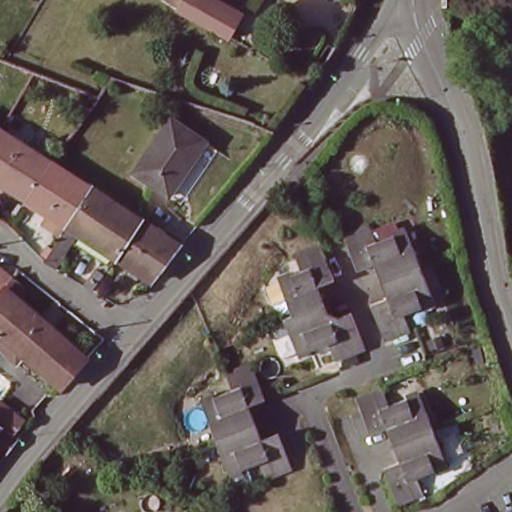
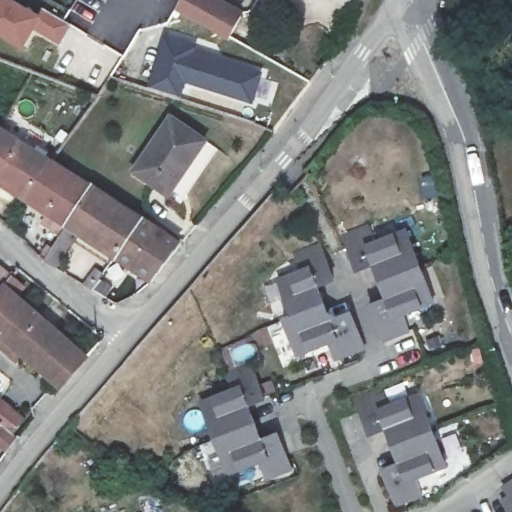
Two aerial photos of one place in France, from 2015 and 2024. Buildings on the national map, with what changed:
new [(42,8),(73,26),(60,45),(34,30),(23,49),(0,35),(0,0),(17,0),(39,13),(42,8)]
unchanged [(179,0),(224,0),(242,9),(230,39),(174,9),(179,0)]
new [(201,45),(199,51),(264,71),(254,104),(187,83),(183,95),(149,86),(165,35),(201,45)]
unchanged [(172,116),(206,138),(169,194),(134,172),(172,116)]
unchanged [(0,129),(3,130),(59,168),(34,205),(0,183),(0,129)]
unchanged [(73,230),(34,205),(59,168),(97,193),(73,230)]
unchanged [(52,251),(58,254),(73,230),(97,193),(146,226),(122,262),(83,237),(61,274),(50,268),(52,263),(47,260),(52,251)]
unchanged [(375,281),(369,263),(352,269),(339,234),(365,224),(372,242),(402,230),(415,267),(375,281)]
unchanged [(184,252),(158,285),(122,262),(146,226),(184,252)]
unchanged [(264,282),(296,270),(289,253),(315,243),(329,279),(312,285),(319,302),(279,319),(264,282)]
unchanged [(17,279),(17,278),(29,288),(21,299),(92,361),(68,388),(3,332),(0,335),(0,265),(16,279),(17,279)]
unchanged [(415,267),(429,303),(399,314),(404,330),(404,331),(378,340),(365,304),(377,299),(382,298),(375,281),(415,267)]
unchanged [(319,302),(326,319),(348,311),(360,347),(330,359),(324,343),(293,355),(279,319),(319,302)]
unchanged [(214,437),(201,402),(231,389),(225,374),(251,364),(264,399),(248,405),(254,422),(214,437)]
unchanged [(393,447),(386,429),(369,435),(355,400),(382,390),(389,407),(419,395),(432,431),(393,447)]
unchanged [(0,442),(0,397),(2,396),(24,414),(11,431),(22,439),(12,453),(0,442)]
unchanged [(254,422),(262,441),(278,434),(291,467),(264,478),(257,462),(228,472),(214,437),(254,422)]
unchanged [(432,431),(447,466),(415,479),(422,495),(397,505),(382,470),(400,464),(393,447),(432,431)]

